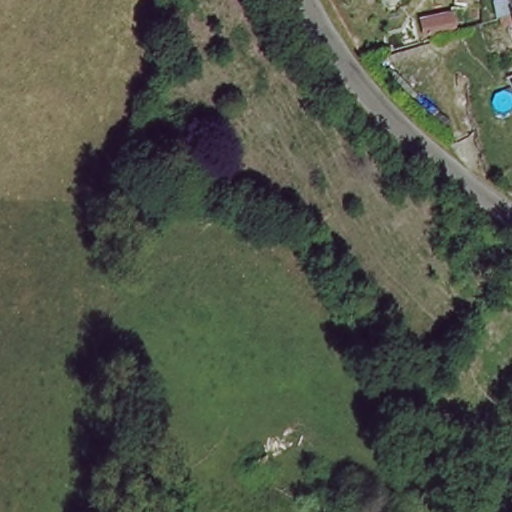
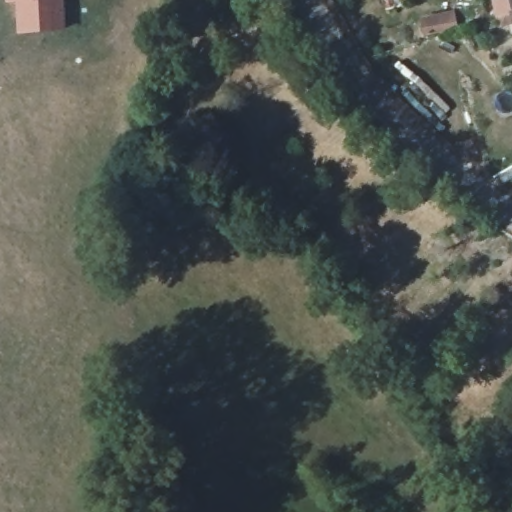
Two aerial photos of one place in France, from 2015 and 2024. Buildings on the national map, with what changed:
new [(16,34),(15,2),(5,2),(4,0),(64,0),(65,31),(16,34)]
unchanged [(511,0),(512,0),(512,9),(511,0)]

